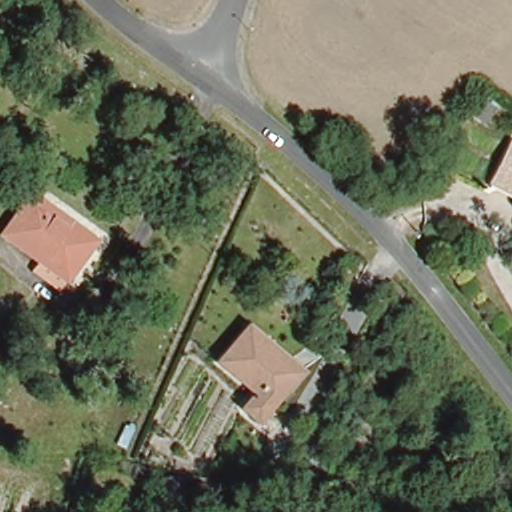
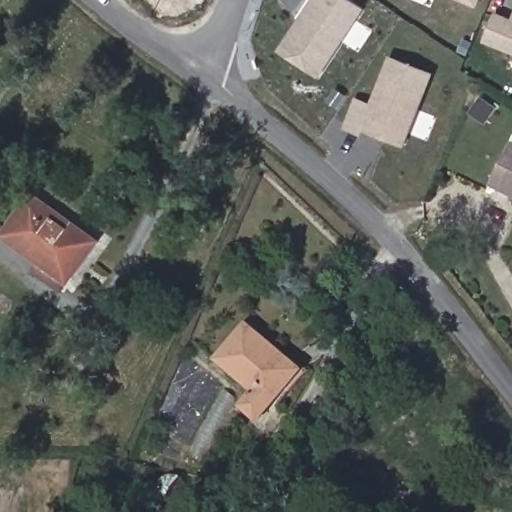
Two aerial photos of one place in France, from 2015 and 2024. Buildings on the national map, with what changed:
new [(301,15),(311,0),(346,0),(360,9),(316,77),(277,52),(297,22),(301,15)]
new [(490,44),(500,18),(512,22),(512,53),(490,44)]
new [(364,127),(362,132),(346,126),(357,98),(372,104),(390,55),(431,71),(404,142),(385,135),(378,133),(364,127)]
unchanged [(492,181),(512,139),(512,190),(492,181)]
unchanged [(32,264),(39,255),(4,230),(32,190),(95,232),(66,274),(60,283),(32,264)]
unchanged [(299,370),(270,404),(219,361),(247,326),(299,370)]
new [(87,379),(66,363),(85,338),(106,353),(87,379)]

